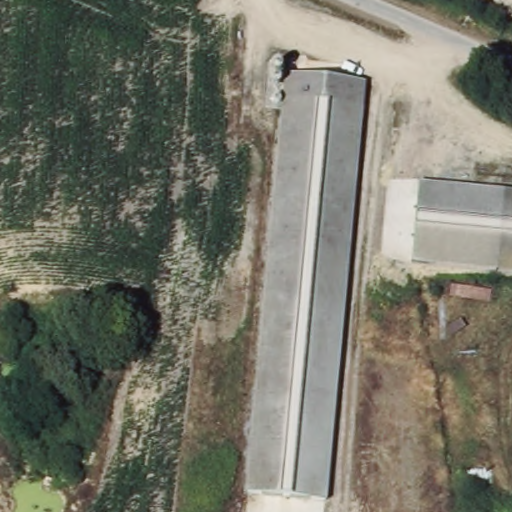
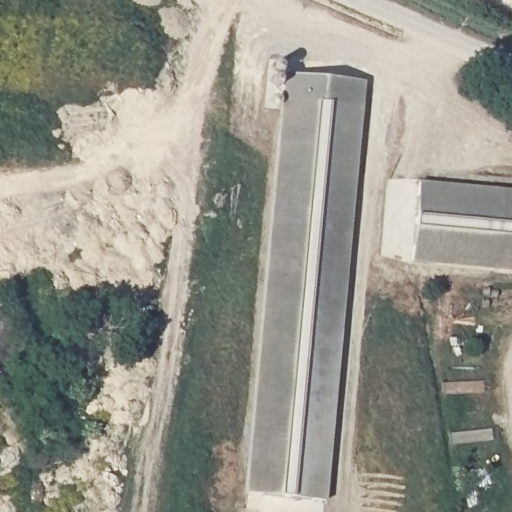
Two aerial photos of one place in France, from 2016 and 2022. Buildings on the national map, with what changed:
unchanged [(363,79),(325,499),(249,492),(287,72),(363,79)]
unchanged [(418,260),(425,182),(512,190),(512,269),(418,260)]

